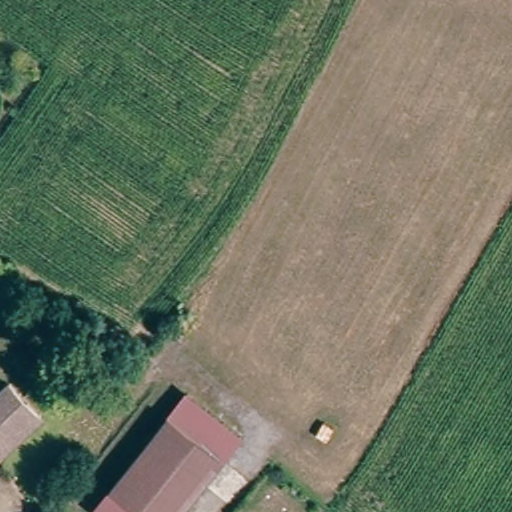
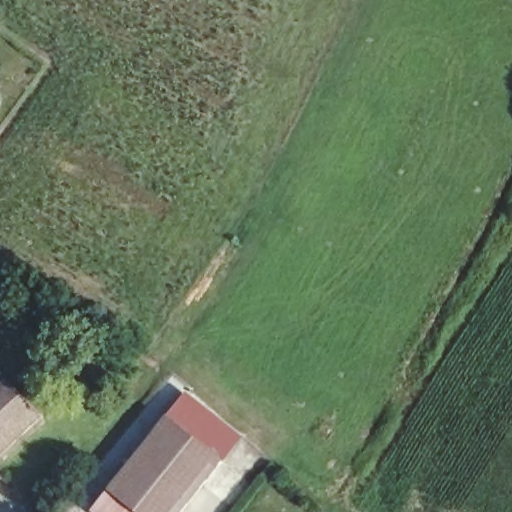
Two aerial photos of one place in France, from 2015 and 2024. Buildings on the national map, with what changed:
unchanged [(47,408),(0,456),(0,382),(5,376),(47,408)]
unchanged [(220,461),(165,424),(177,407),(183,400),(236,440),(227,451),(220,461)]
unchanged [(182,512),(99,512),(165,424),(220,461),(182,512)]

